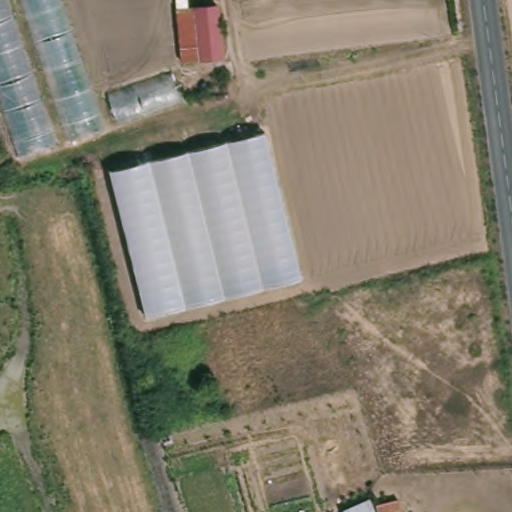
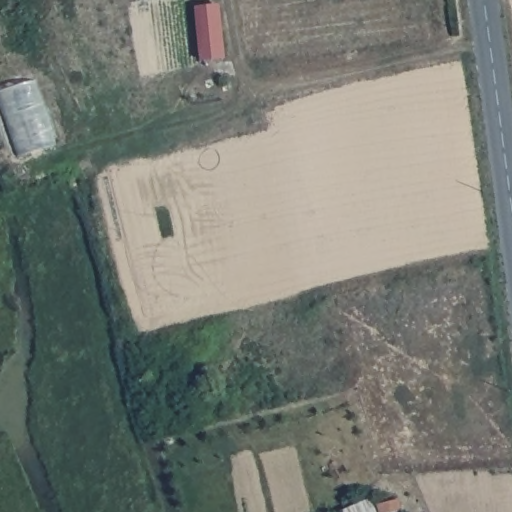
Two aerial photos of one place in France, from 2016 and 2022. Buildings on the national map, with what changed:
demolished [(0,104),(0,0),(59,0),(104,133),(19,161),(0,104)]
unchanged [(190,10),(221,7),(224,65),(181,66),(175,0),(190,0),(190,10)]
demolished [(303,279),(147,320),(110,175),(266,137),(303,279)]

